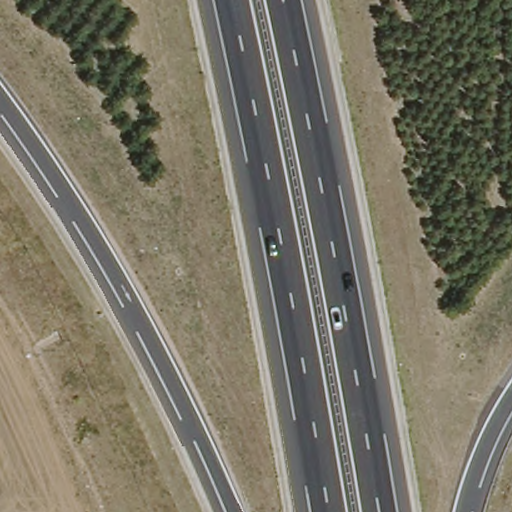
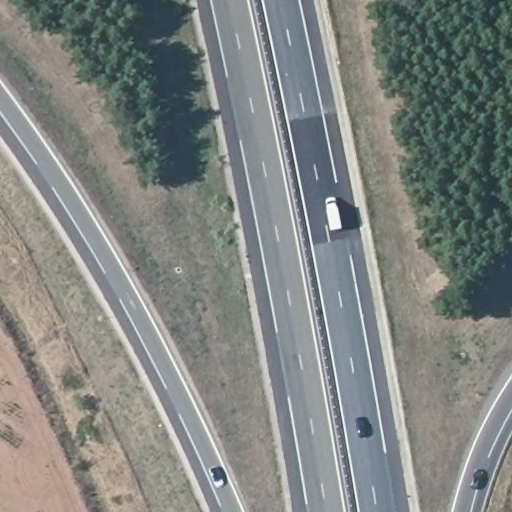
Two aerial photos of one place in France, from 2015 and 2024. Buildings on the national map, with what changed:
unchanged [(245,71),(235,85),(223,75),(233,61),(245,71)]

